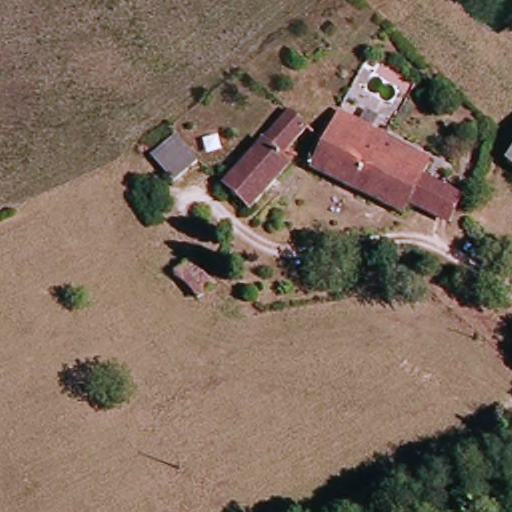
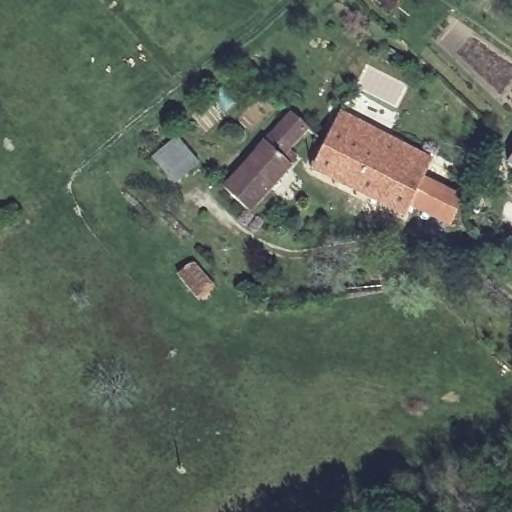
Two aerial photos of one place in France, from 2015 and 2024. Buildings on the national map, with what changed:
unchanged [(247,223),(217,202),(216,201),(294,110),(307,119),(299,130),(306,134),(283,163),(291,169),(247,223)]
unchanged [(437,160),(427,179),(426,179),(423,186),(409,212),(314,167),(340,115),(437,160)]
unchanged [(198,163),(179,189),(150,168),(169,142),(198,163)]
unchanged [(512,163),(512,175),(506,172),(512,163)]
unchanged [(423,186),(426,179),(427,179),(464,196),(464,198),(453,220),(415,203),(414,203),(423,186)]

